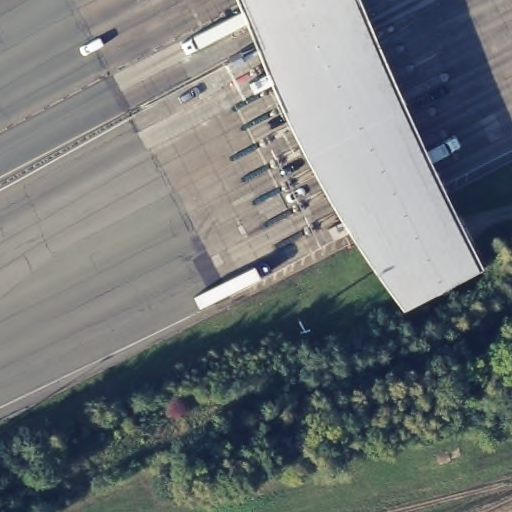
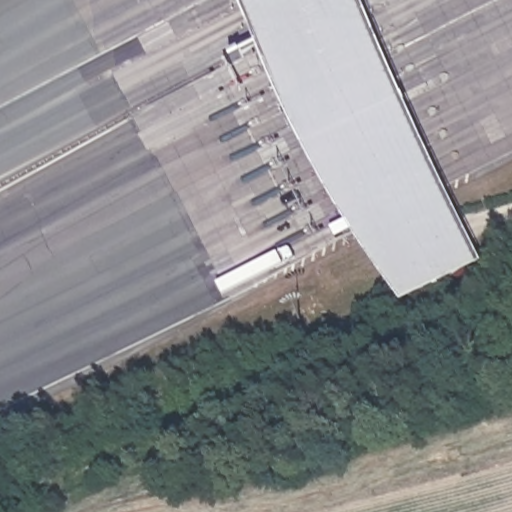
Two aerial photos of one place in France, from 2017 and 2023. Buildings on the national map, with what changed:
unchanged [(397,91),(423,149),(455,215),(482,268),(401,307),(361,249),(327,197),(299,144),(275,90),(253,36),(238,0),(358,0),(373,36),(397,91)]

